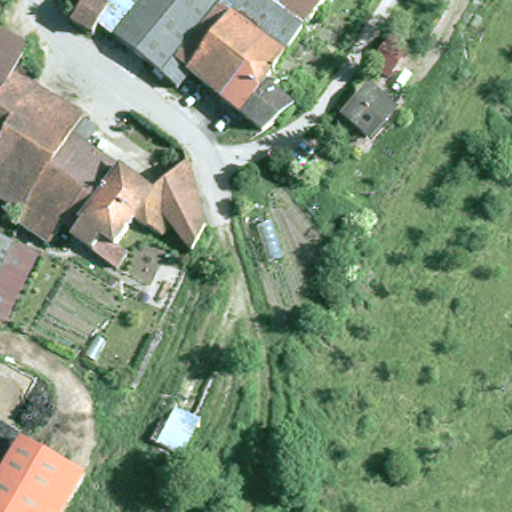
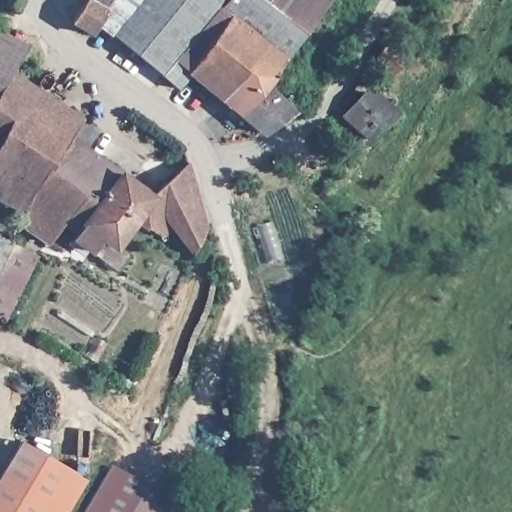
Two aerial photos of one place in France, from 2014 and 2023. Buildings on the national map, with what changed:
unchanged [(107,4),(96,22),(89,33),(67,19),(79,0),(105,0),(104,2),(107,4)]
unchanged [(104,2),(105,0),(136,0),(109,34),(96,22),(107,4),(104,2)]
unchanged [(172,88),(158,76),(159,75),(109,34),(136,0),(322,0),(261,83),(285,110),(257,133),(185,72),(172,88)]
unchanged [(25,46),(12,65),(0,85),(0,32),(25,46)]
unchanged [(114,269),(89,254),(66,240),(70,234),(61,228),(58,230),(44,243),(29,233),(13,223),(16,215),(5,208),(0,204),(0,85),(12,65),(24,73),(19,81),(79,120),(78,121),(92,131),(81,146),(145,194),(142,200),(130,217),(112,245),(124,254),(114,269)]
unchanged [(345,111),(370,85),(391,104),(365,130),(345,111)]
unchanged [(208,224),(202,232),(194,243),(172,225),(161,234),(130,217),(142,200),(145,194),(155,186),(183,161),(208,224)]
unchanged [(8,247),(7,250),(0,263),(0,243),(8,247)]
unchanged [(7,250),(31,262),(1,326),(0,325),(0,263),(7,250)]
unchanged [(20,441),(70,467),(82,474),(61,512),(0,512),(0,478),(20,441)]
new [(112,465),(164,497),(155,512),(85,512),(112,465)]

